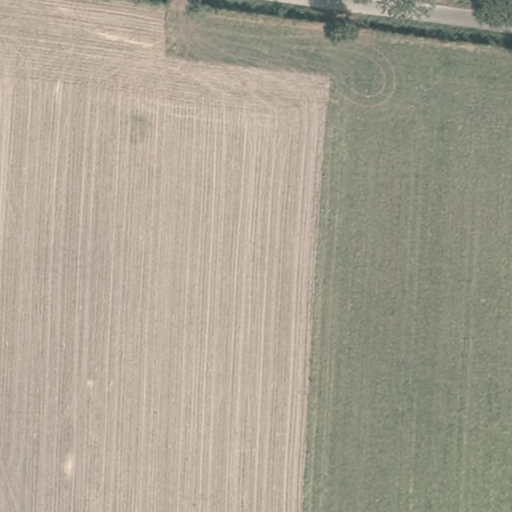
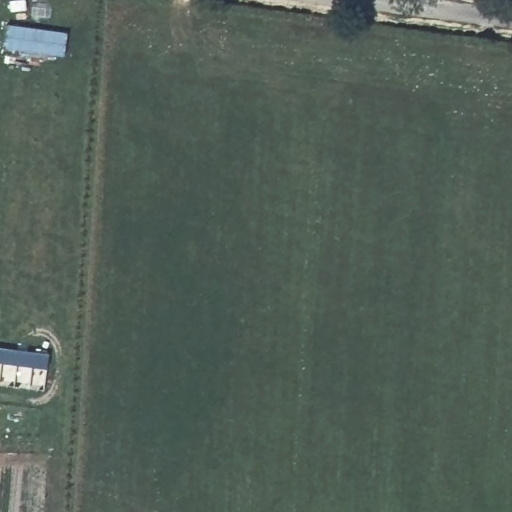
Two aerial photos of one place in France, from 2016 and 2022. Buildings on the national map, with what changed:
new [(63,57),(3,49),(5,24),(66,32),(63,57)]
new [(46,368),(0,362),(0,349),(48,356),(46,368)]

